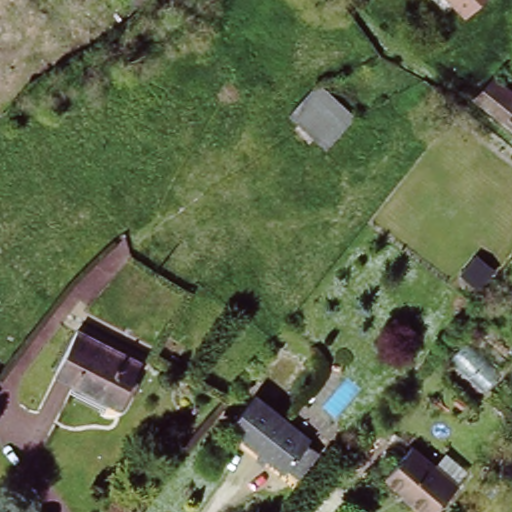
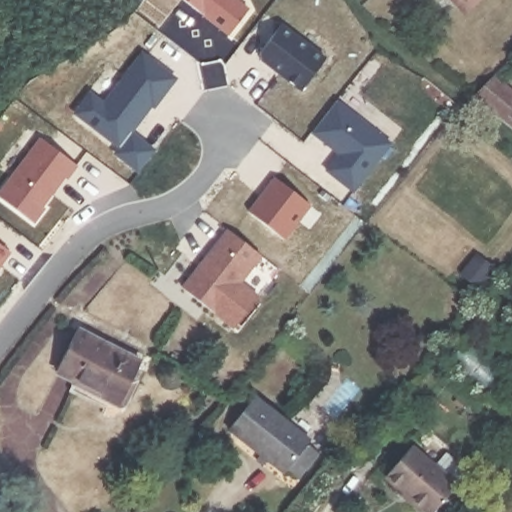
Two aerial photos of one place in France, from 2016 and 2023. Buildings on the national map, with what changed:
new [(248,10),(229,36),(183,0),(235,0),(248,10)]
unchanged [(447,0),(485,0),(467,19),(447,0)]
new [(281,23),(326,57),(303,90),(256,55),(281,23)]
new [(90,93),(104,103),(139,57),(146,56),(173,76),(174,83),(155,107),(150,104),(146,110),(148,111),(133,132),(156,150),(140,172),(120,156),(119,150),(120,147),(79,116),(78,110),(90,93)]
unchanged [(512,133),(473,101),(494,79),(512,93),(512,133)]
demolished [(289,112),(317,82),(354,116),(326,146),(289,112)]
new [(354,190),(328,169),(340,153),(313,131),(337,99),(392,143),(354,190)]
new [(311,204),(285,238),(249,211),(276,177),(311,204)]
new [(227,228),(262,256),(240,282),(258,296),(233,327),(183,286),(227,228)]
new [(6,250),(0,259),(0,245),(6,250)]
unchanged [(108,393),(103,403),(69,386),(74,376),(55,366),(75,326),(138,358),(129,377),(135,380),(124,401),(108,393)]
unchanged [(284,473),(280,477),(226,434),(251,402),(306,445),(303,449),(314,457),(294,482),(284,473)]
unchanged [(406,451),(432,472),(443,459),(464,476),(436,512),(419,512),(381,482),(406,451)]

